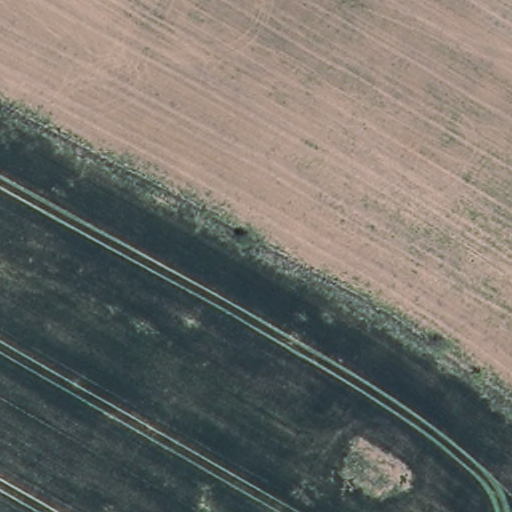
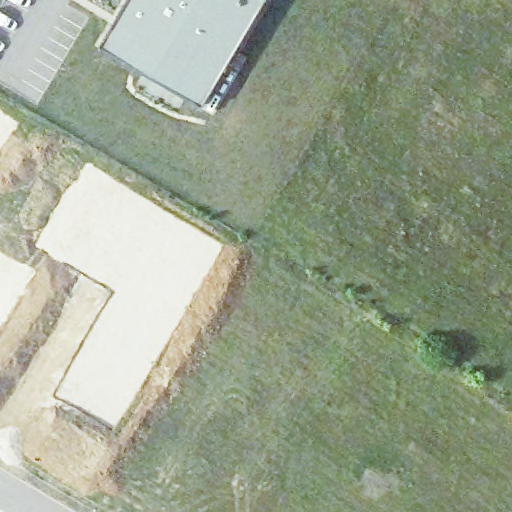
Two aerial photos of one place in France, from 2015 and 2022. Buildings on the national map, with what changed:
new [(205,107),(101,45),(129,0),(269,0),(205,107)]

